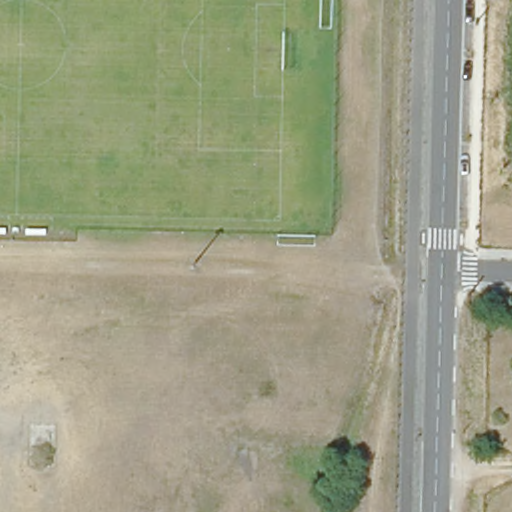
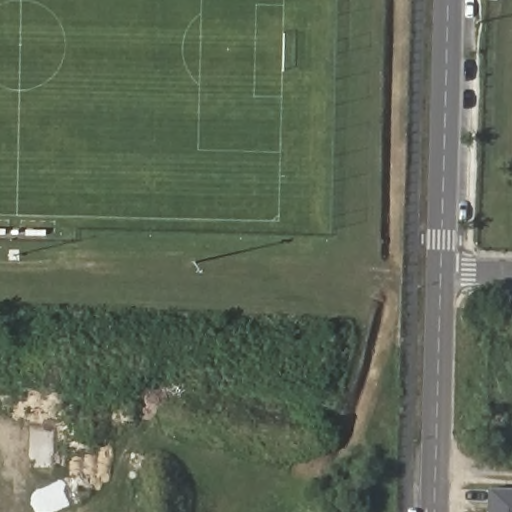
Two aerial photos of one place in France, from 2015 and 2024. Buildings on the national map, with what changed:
new [(489,491),(512,491),(512,512),(489,512),(489,491)]

